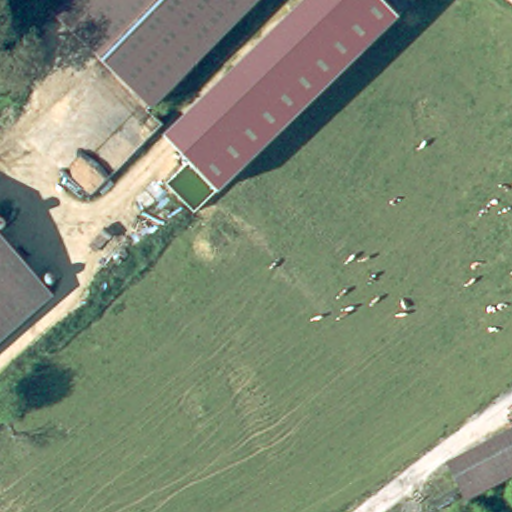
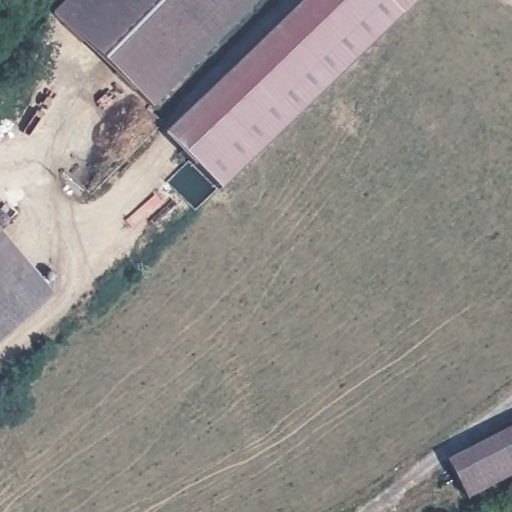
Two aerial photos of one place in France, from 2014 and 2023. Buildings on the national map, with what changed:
unchanged [(57,2),(59,0),(248,0),(152,96),(57,2)]
unchanged [(389,0),(398,9),(217,189),(161,133),(299,0),(389,0)]
unchanged [(389,0),(408,0),(398,9),(389,0)]
unchanged [(50,284),(0,328),(0,226),(50,284)]
unchanged [(450,456),(512,426),(512,463),(465,486),(450,456)]

